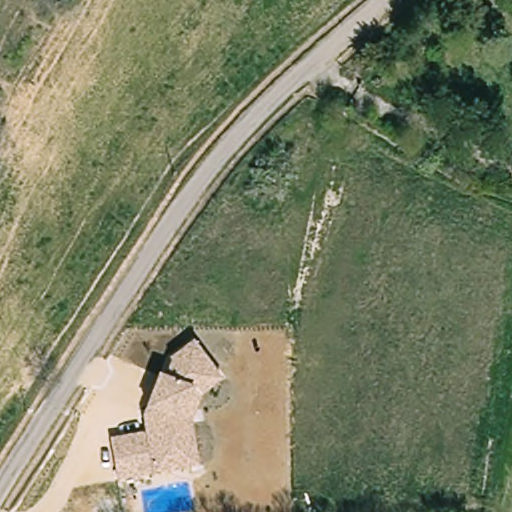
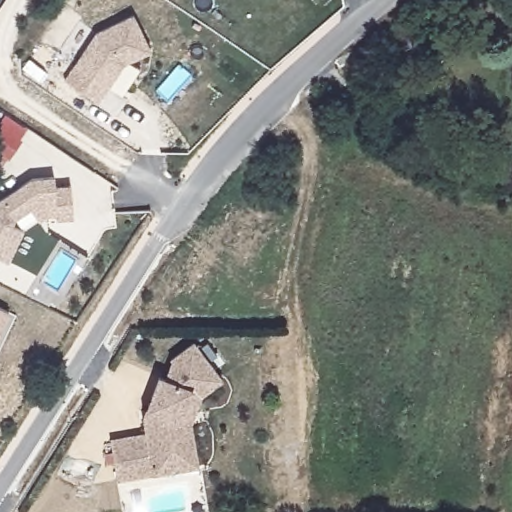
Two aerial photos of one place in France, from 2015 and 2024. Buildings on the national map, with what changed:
new [(125,61),(101,101),(65,79),(95,33),(133,14),(151,49),(125,61)]
new [(0,257),(0,199),(30,178),(55,177),(55,187),(71,185),(73,217),(54,219),(55,215),(45,217),(37,221),(31,208),(15,220),(12,225),(24,231),(8,261),(0,257)]
new [(18,316),(2,351),(0,350),(0,308),(18,316)]
unchanged [(118,482),(109,439),(143,432),(145,408),(157,373),(194,341),(221,380),(200,397),(190,426),(198,466),(118,482)]

